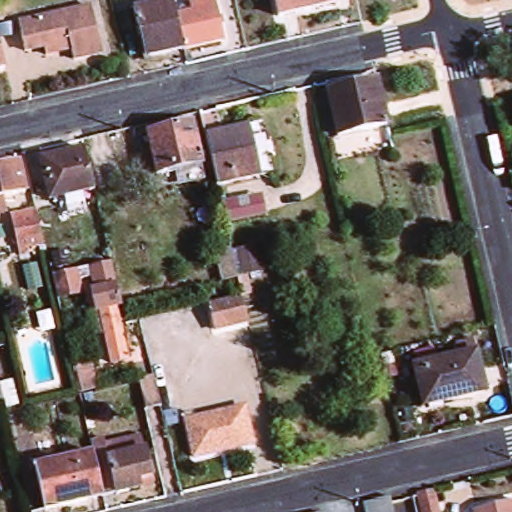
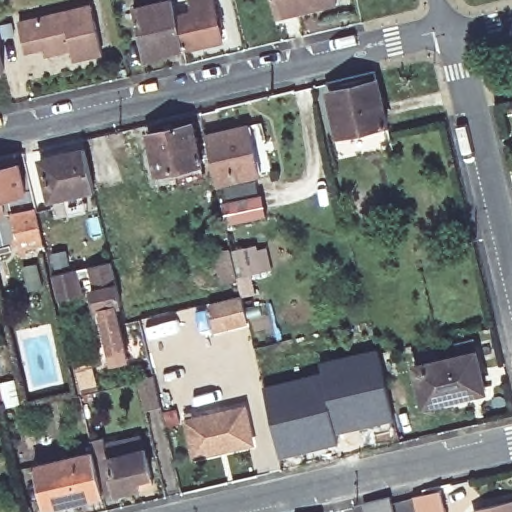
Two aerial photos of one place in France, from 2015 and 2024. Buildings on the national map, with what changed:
unchanged [(193,44),(155,53),(144,4),(161,0),(183,0),(185,11),(193,44)]
unchanged [(206,0),(224,0),(231,35),(193,44),(185,11),(207,6),(206,0)]
unchanged [(288,17),(285,0),(345,0),(346,4),(288,17)]
unchanged [(54,44),(34,48),(28,19),(102,3),(112,49),(84,55),(82,47),(56,52),(54,44)]
unchanged [(0,67),(0,46),(4,66),(0,67)]
unchanged [(392,99),(398,124),(350,135),(340,91),(387,79),(392,99)]
unchanged [(202,116),(213,165),(170,175),(158,126),(202,116)]
unchanged [(260,123),(271,173),(227,183),(220,154),(215,133),(260,123)]
unchanged [(105,189),(63,199),(53,158),(95,147),(105,189)]
unchanged [(0,170),(29,164),(35,192),(13,197),(16,212),(0,215),(0,170)]
new [(264,195),(269,214),(227,224),(223,204),(264,195)]
unchanged [(55,242),(31,248),(23,214),(47,208),(55,242)]
unchanged [(125,272),(127,281),(129,290),(131,300),(124,302),(136,354),(120,359),(107,307),(104,307),(100,287),(106,285),(102,265),(101,262),(121,257),(122,261),(125,272)]
unchanged [(220,264),(234,260),(241,289),(227,292),(220,264)]
unchanged [(70,272),(71,275),(76,295),(57,299),(55,293),(51,276),(62,274),(70,272)]
unchanged [(242,293),(249,321),(216,330),(210,300),(242,293)]
new [(378,347),(393,420),(336,433),(319,371),(317,360),(378,347)]
unchanged [(487,354),(495,392),(461,400),(460,397),(435,403),(427,367),(487,354)]
unchanged [(89,364),(95,389),(82,392),(76,367),(89,364)]
new [(319,371),(336,433),(338,443),(278,458),(262,384),(319,371)]
unchanged [(142,395),(139,382),(139,381),(155,377),(156,384),(161,407),(146,410),(142,395)]
unchanged [(15,381),(16,387),(20,403),(6,407),(0,384),(15,381)]
unchanged [(246,444),(207,453),(199,418),(257,404),(262,426),(265,439),(246,444)]
unchanged [(155,484),(118,492),(107,447),(107,446),(121,443),(121,441),(158,433),(161,446),(167,474),(168,481),(155,484)]
unchanged [(107,447),(118,492),(60,505),(55,481),(50,461),(107,447)]
unchanged [(440,493),(445,512),(423,512),(419,498),(440,493)]
unchanged [(402,499),(405,512),(379,512),(377,505),(402,499)]
unchanged [(512,502),(512,512),(490,512),(488,507),(512,502)]
unchanged [(333,509),(334,512),(323,512),(333,509)]

